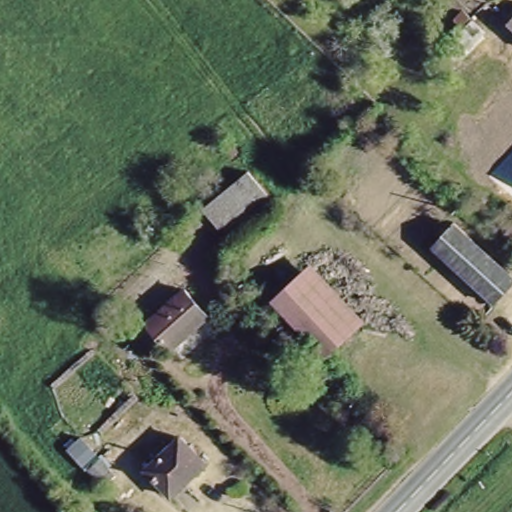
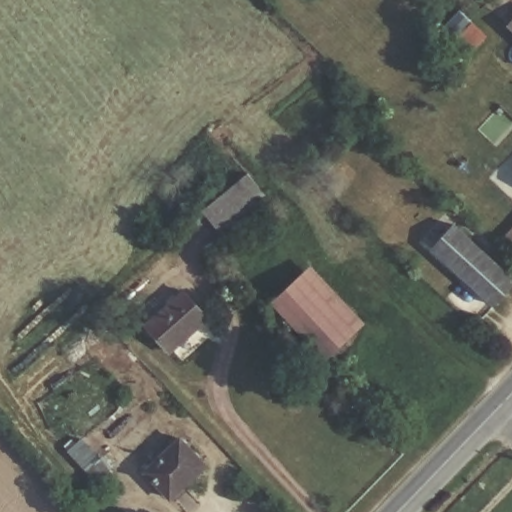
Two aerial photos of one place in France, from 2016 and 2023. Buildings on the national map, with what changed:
unchanged [(512,17),(512,39),(501,29),(512,17)]
unchanged [(228,223),(222,229),(204,210),(245,171),(265,190),(269,195),(255,209),(234,229),(228,223)]
unchanged [(512,222),(512,245),(500,234),(512,222)]
unchanged [(486,305),(425,247),(447,223),(509,281),(486,305)]
unchanged [(267,306),(305,271),(357,327),(319,361),(267,306)]
unchanged [(202,317),(166,352),(142,327),(179,291),(202,317)]
unchanged [(140,471),(175,437),(205,469),(170,502),(140,471)]
unchanged [(87,472),(100,459),(115,475),(100,488),(87,472)]

